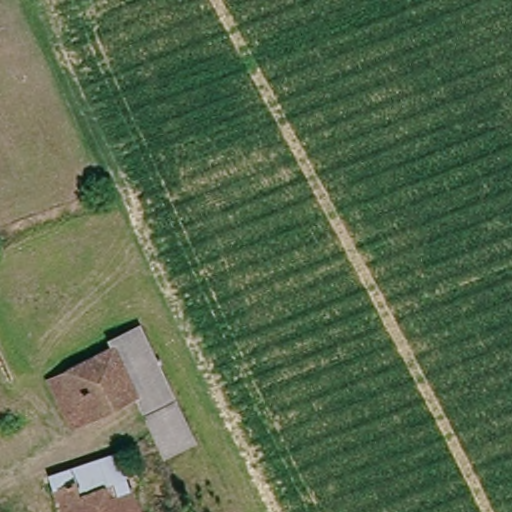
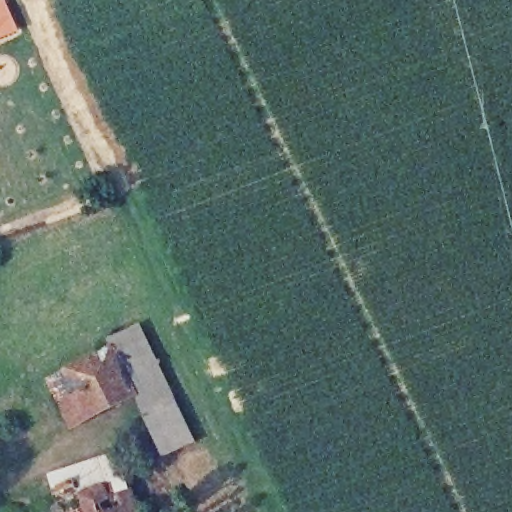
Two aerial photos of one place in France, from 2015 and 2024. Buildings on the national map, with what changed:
new [(6,0),(20,32),(0,41),(0,0),(6,0)]
unchanged [(115,337),(144,325),(196,440),(169,455),(142,396),(119,346),(115,337)]
unchanged [(55,379),(119,346),(142,396),(79,425),(67,403),(55,379)]
unchanged [(72,480),(77,492),(107,482),(112,492),(128,485),(141,512),(66,512),(55,487),(72,480)]

